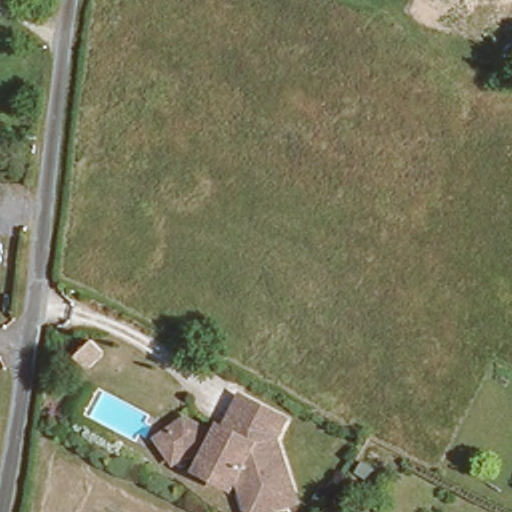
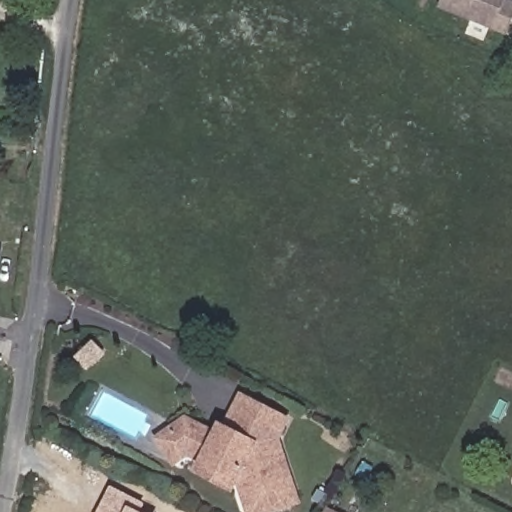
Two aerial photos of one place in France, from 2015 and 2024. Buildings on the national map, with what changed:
new [(439,8),(442,0),(507,0),(512,3),(512,24),(507,36),(439,8)]
demolished [(486,44),(452,31),(458,0),(504,0),(486,44)]
unchanged [(193,475),(198,462),(182,452),(172,461),(150,435),(180,410),(217,428),(238,388),(291,410),(281,433),(302,501),(268,512),(240,512),(232,486),(193,475)]
new [(146,503),(142,512),(98,512),(112,486),(146,503)]
unchanged [(342,512),(325,512),(330,505),(342,512)]

